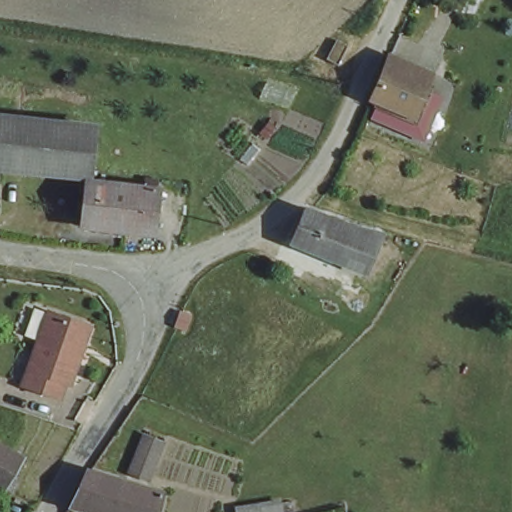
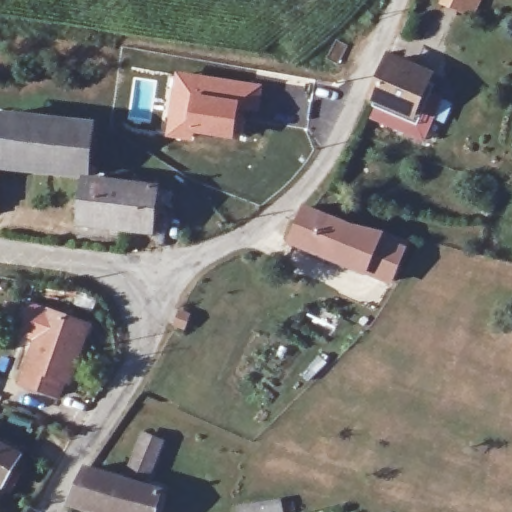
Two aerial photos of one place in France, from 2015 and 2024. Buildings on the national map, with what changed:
unchanged [(466,16),(452,9),(456,0),(474,0),(466,16)]
unchanged [(430,75),(417,104),(412,114),(375,100),(391,60),(430,75)]
new [(175,70),(264,84),(260,113),(240,110),(235,140),(194,134),(193,141),(164,137),(175,70)]
unchanged [(81,179),(0,163),(0,122),(91,127),(81,179)]
unchanged [(168,180),(158,229),(78,227),(79,182),(168,180)]
unchanged [(378,220),(368,252),(356,274),(281,256),(305,199),(378,220)]
unchanged [(90,328),(66,383),(61,381),(55,396),(20,380),(48,311),(90,328)]
unchanged [(153,489),(151,512),(88,512),(70,506),(89,465),(128,480),(137,433),(165,444),(153,489)]
unchanged [(1,481),(6,486),(0,494),(0,452),(13,461),(1,481)]
unchanged [(274,512),(281,511),(281,512),(274,512)]

